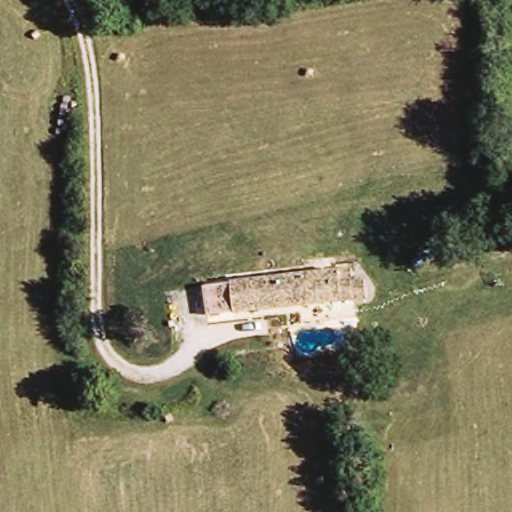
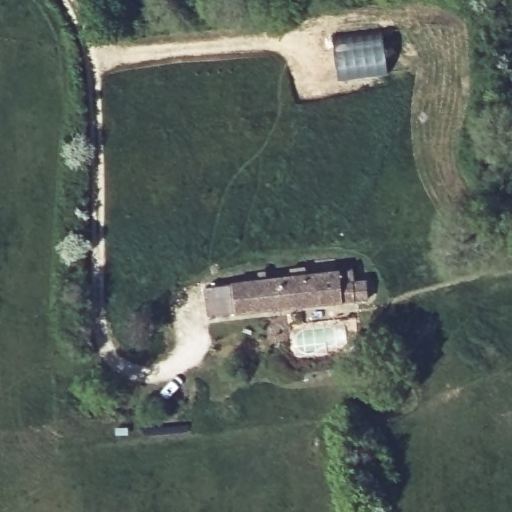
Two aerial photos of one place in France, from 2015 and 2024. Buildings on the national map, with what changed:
new [(380,30),(385,73),(337,82),(331,36),(380,30)]
unchanged [(340,281),(351,282),(353,302),(235,315),(230,283),(338,269),(340,281)]

